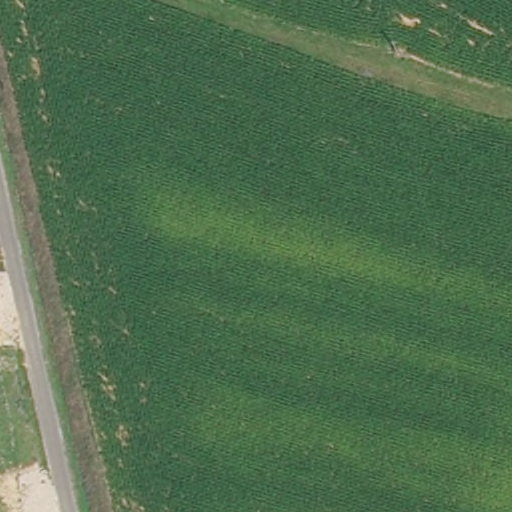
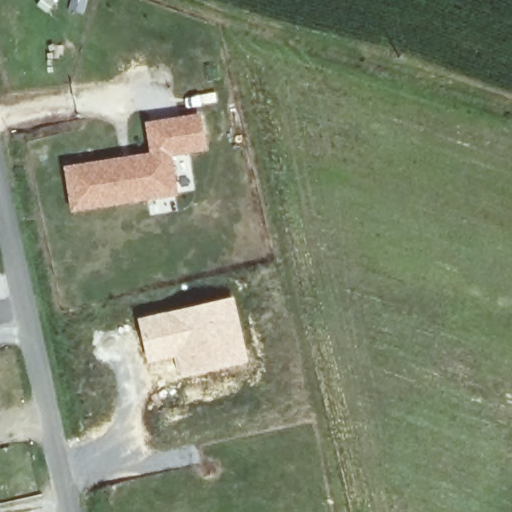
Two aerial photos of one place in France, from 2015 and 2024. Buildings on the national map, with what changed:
new [(207,151),(173,156),(179,196),(71,213),(64,166),(150,153),(145,123),(202,113),(207,151)]
new [(233,294),(248,362),(177,378),(172,358),(147,364),(136,317),(233,294)]

